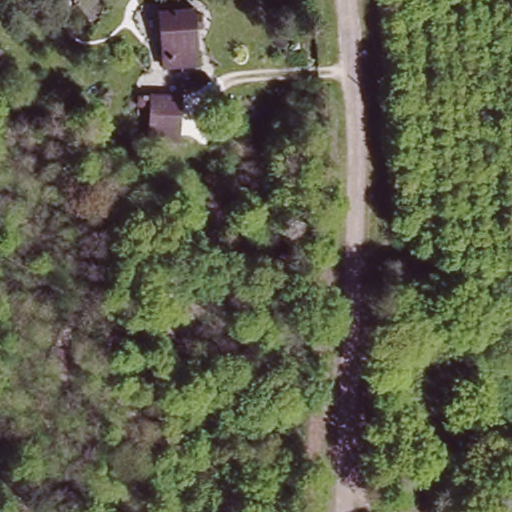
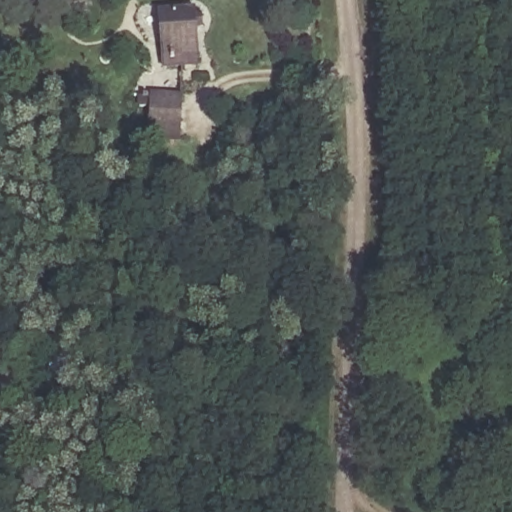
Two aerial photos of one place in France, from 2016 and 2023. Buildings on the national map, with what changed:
unchanged [(180,66),(161,66),(162,11),(192,11),(192,17),(202,17),(202,29),(192,29),(192,56),(192,66),(180,66)]
unchanged [(184,92),(182,144),(147,142),(148,90),(184,92)]

